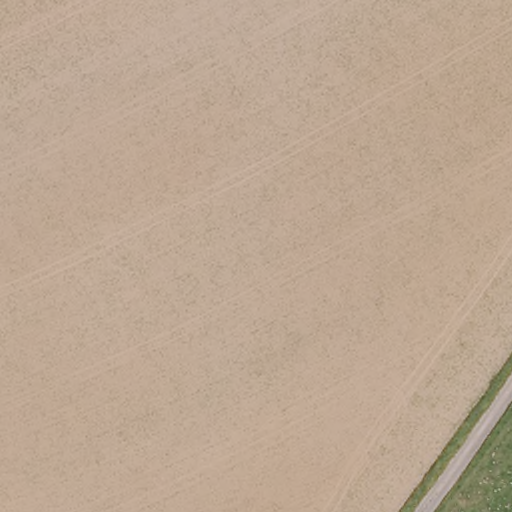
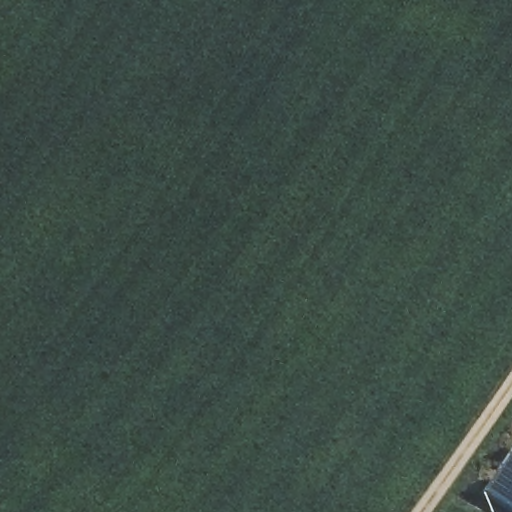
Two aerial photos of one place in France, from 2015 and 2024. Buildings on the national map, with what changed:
new [(487,491),(512,453),(512,508),(487,491)]

